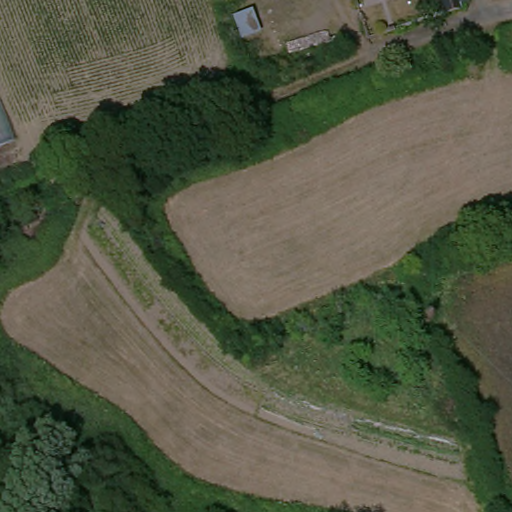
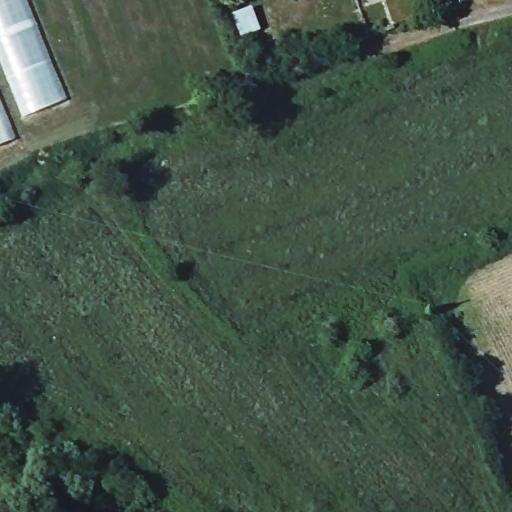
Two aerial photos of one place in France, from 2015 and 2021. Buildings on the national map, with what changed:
new [(0,63),(0,0),(23,0),(63,103),(21,120),(0,63)]
unchanged [(461,7),(460,8),(439,15),(435,0),(459,0),(461,7)]
unchanged [(0,145),(0,107),(12,139),(0,145)]

